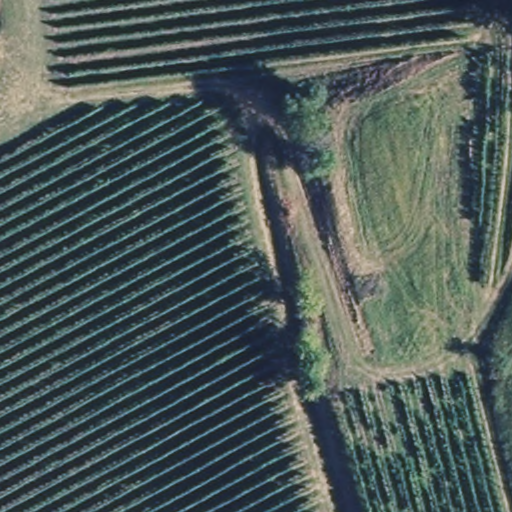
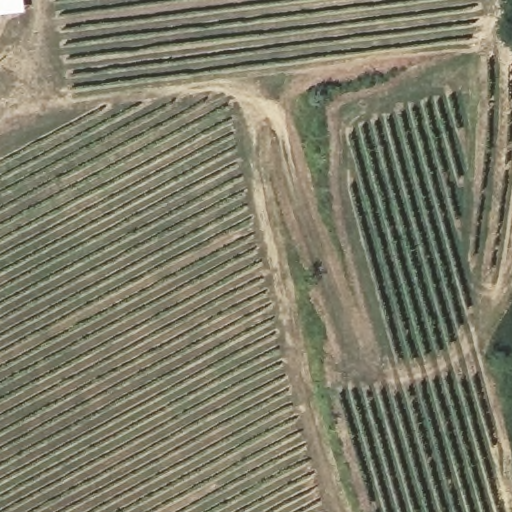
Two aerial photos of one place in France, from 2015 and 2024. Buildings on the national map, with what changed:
new [(21,0),(23,14),(0,17),(0,0),(21,0)]

